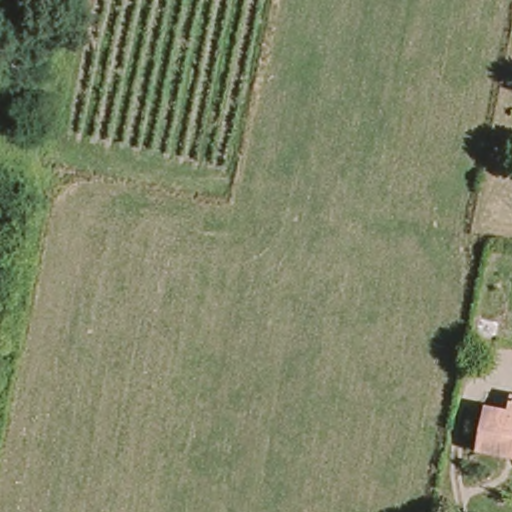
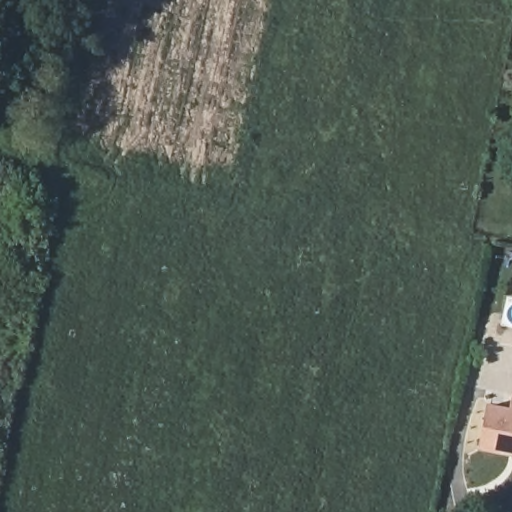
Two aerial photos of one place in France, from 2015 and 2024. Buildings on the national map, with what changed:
unchanged [(480,449),(489,407),(512,411),(512,455),(508,455),(480,449)]

